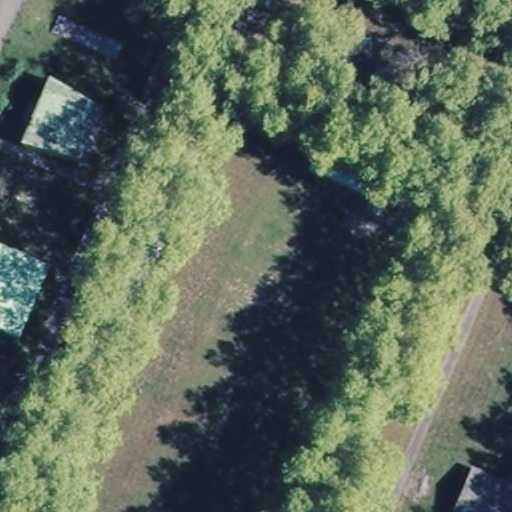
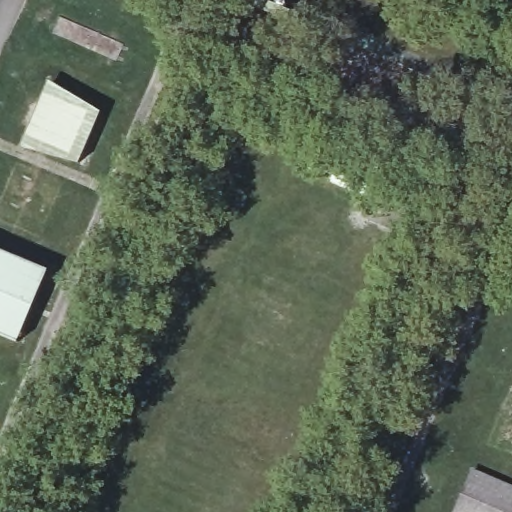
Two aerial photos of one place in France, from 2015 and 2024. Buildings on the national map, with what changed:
unchanged [(293,30),(249,6),(252,0),(279,0),(302,12),(293,30)]
unchanged [(80,165),(21,145),(49,76),(102,110),(80,165)]
unchanged [(359,217),(367,196),(305,170),(315,148),(374,175),(383,160),(443,187),(419,237),(359,217)]
new [(19,343),(0,335),(0,250),(49,271),(19,343)]
unchanged [(471,465),(512,482),(512,512),(448,512),(471,465)]

